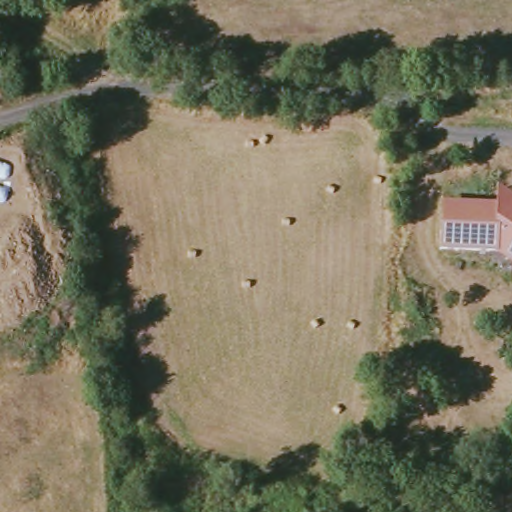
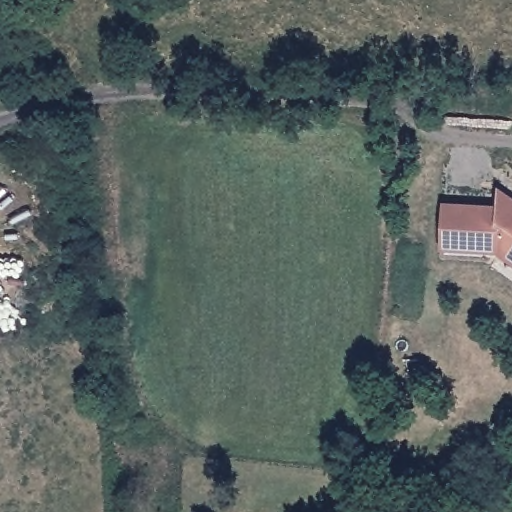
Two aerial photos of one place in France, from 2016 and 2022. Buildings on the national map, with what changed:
unchanged [(497,185),(512,195),(512,263),(494,251),(439,248),(440,199),(497,202),(497,185)]

